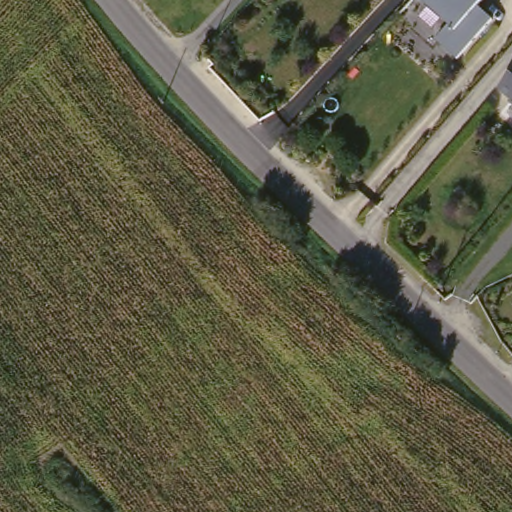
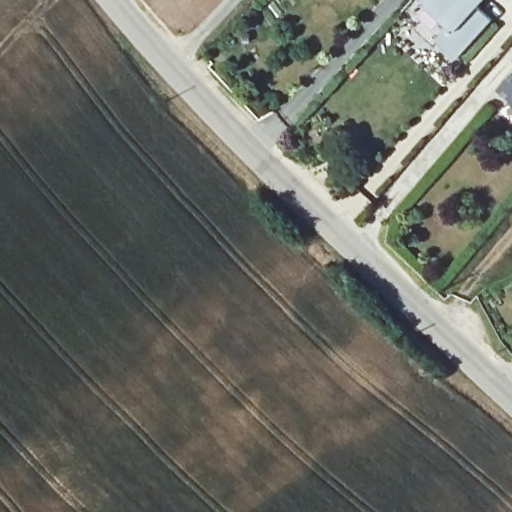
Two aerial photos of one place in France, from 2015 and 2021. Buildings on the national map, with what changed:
unchanged [(480,5),(490,17),(458,56),(440,40),(451,28),(427,0),(484,0),(480,5)]
unchanged [(512,85),(512,105),(510,107),(497,97),(508,82),(512,85)]

